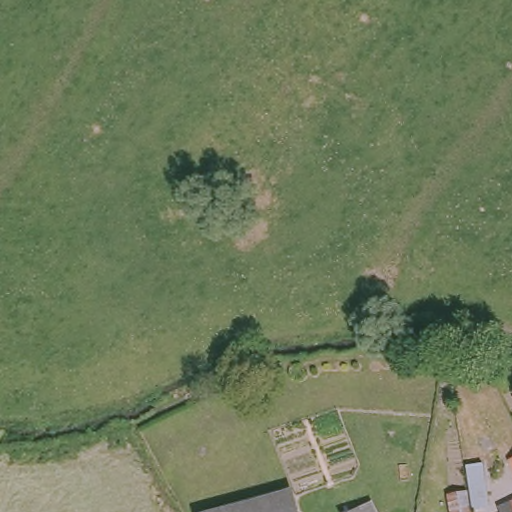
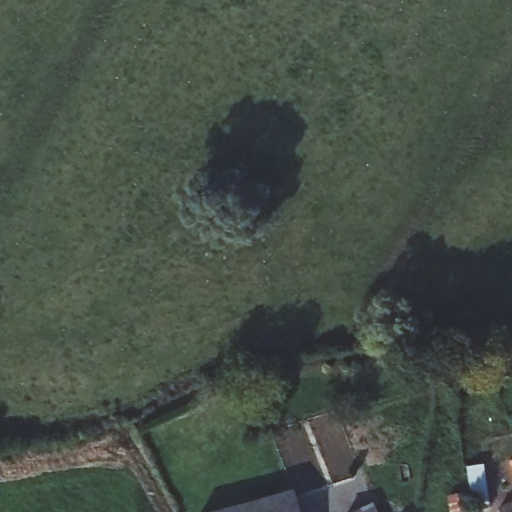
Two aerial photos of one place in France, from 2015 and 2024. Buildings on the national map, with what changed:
unchanged [(512,463),(512,469),(509,465),(512,463)]
unchanged [(469,493),(467,466),(484,465),(490,510),(480,512),(449,512),(446,497),(469,493)]
unchanged [(302,512),(225,512),(296,491),(302,512)]
unchanged [(512,502),(512,512),(502,512),(499,507),(512,502)]
unchanged [(373,512),(354,512),(369,505),(373,512)]

